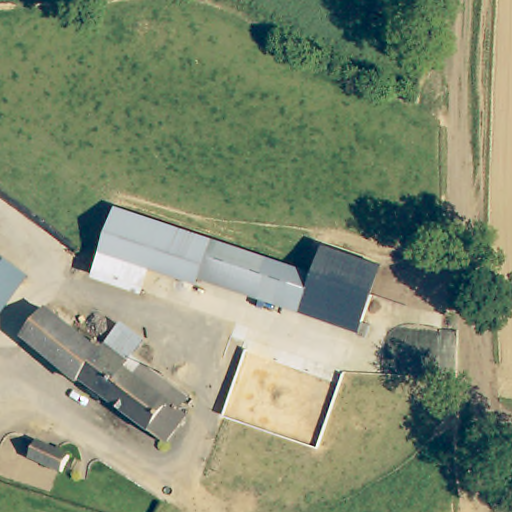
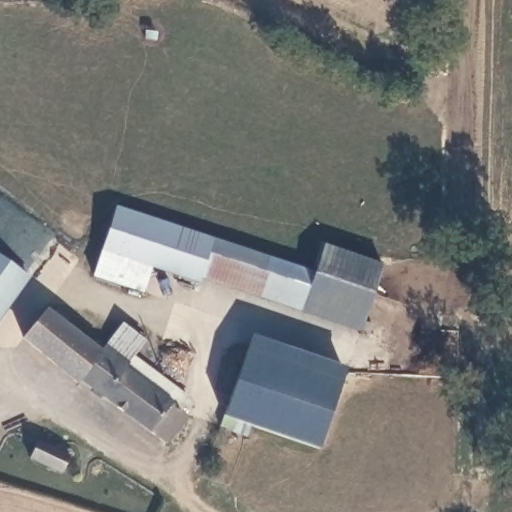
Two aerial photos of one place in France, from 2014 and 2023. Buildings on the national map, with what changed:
unchanged [(207,282),(203,290),(157,274),(146,299),(96,280),(122,209),(322,277),(331,248),(391,268),(367,335),(207,282)]
unchanged [(32,275),(0,319),(0,251),(32,275)]
unchanged [(187,409),(195,415),(174,443),(87,378),(85,380),(28,337),(51,307),(108,348),(112,343),(129,323),(152,341),(139,356),(182,388),(196,398),(187,409)]
new [(320,450),(225,417),(250,335),(347,368),(320,450)]
demolished [(255,431),(256,486),(235,487),(233,431),(255,431)]
unchanged [(72,457),(65,473),(63,472),(33,458),(41,440),(72,457)]

